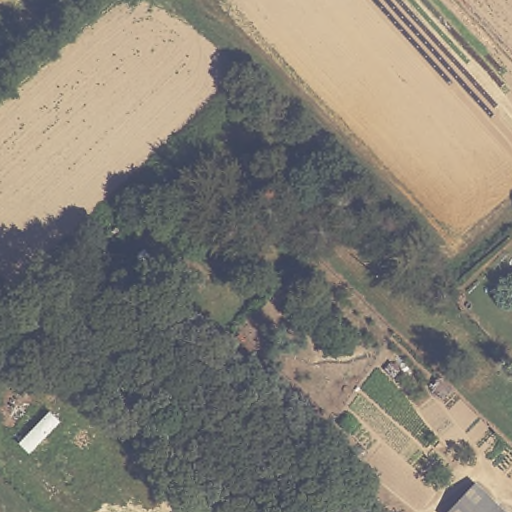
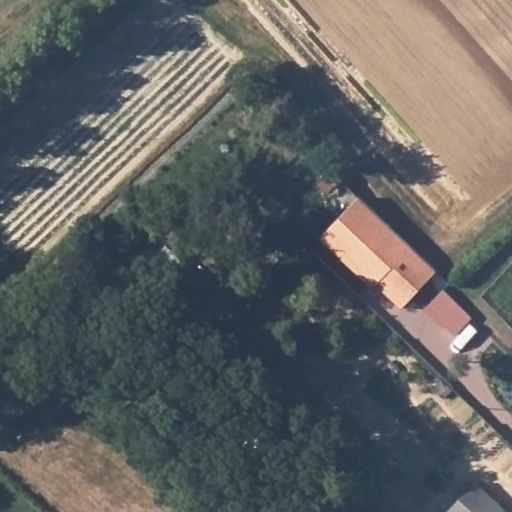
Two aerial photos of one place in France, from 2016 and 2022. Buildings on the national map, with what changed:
new [(358,197),(436,272),(401,309),(377,285),(369,287),(318,239),(358,197)]
unchanged [(180,263),(205,284),(188,303),(165,281),(180,263)]
unchanged [(473,483),(505,512),(446,512),(473,483)]

